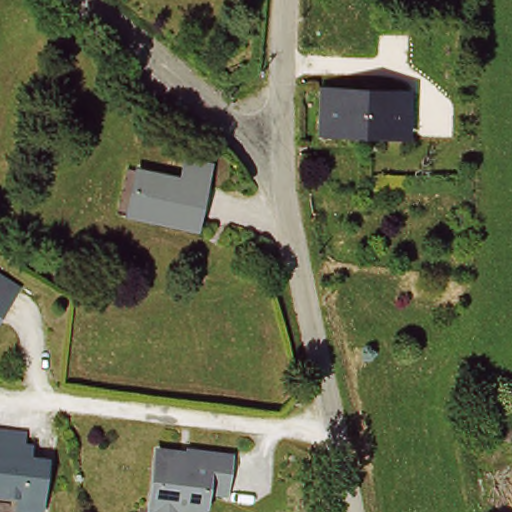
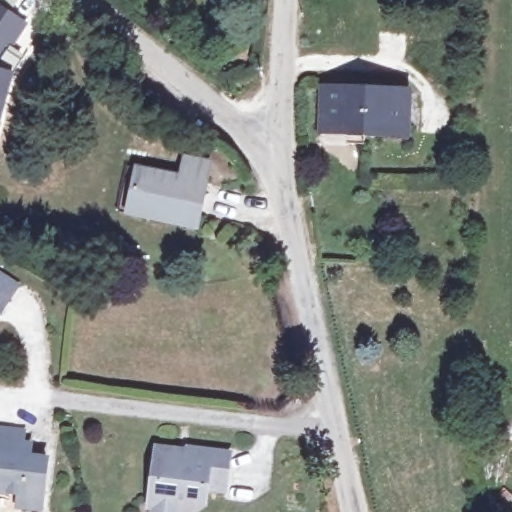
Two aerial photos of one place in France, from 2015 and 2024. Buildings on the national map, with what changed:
new [(0,2),(29,21),(12,46),(23,54),(17,64),(14,70),(0,123),(0,2)]
unchanged [(327,84),(415,91),(413,134),(325,130),(327,84)]
unchanged [(182,192),(190,168),(214,174),(197,234),(137,217),(147,181),(182,192)]
unchanged [(0,314),(0,276),(17,287),(0,314)]
unchanged [(17,506),(18,494),(0,491),(0,428),(22,431),(21,442),(29,443),(27,456),(46,458),(39,509),(17,506)]
unchanged [(180,503),(179,512),(156,512),(157,504),(152,503),(155,479),(161,474),(156,467),(159,444),(181,446),(190,447),(191,444),(232,449),(228,484),(210,482),(207,497),(197,496),(196,504),(180,503)]

